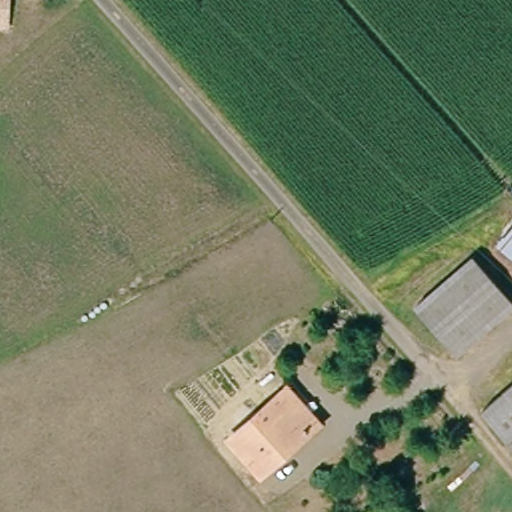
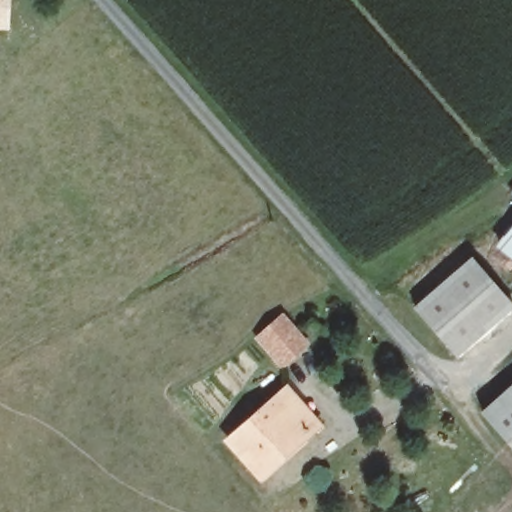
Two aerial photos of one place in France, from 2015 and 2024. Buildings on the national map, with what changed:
unchanged [(10,6),(8,32),(0,30),(0,0),(11,0),(10,6)]
unchanged [(512,222),(512,257),(495,242),(512,222)]
unchanged [(451,353),(409,312),(453,267),(494,310),(451,353)]
new [(254,337),(283,311),(311,343),(282,369),(254,337)]
unchanged [(512,388),(512,449),(509,445),(483,417),(512,388)]
unchanged [(230,436),(284,389),(297,403),(317,427),(308,435),(262,474),(230,436)]

